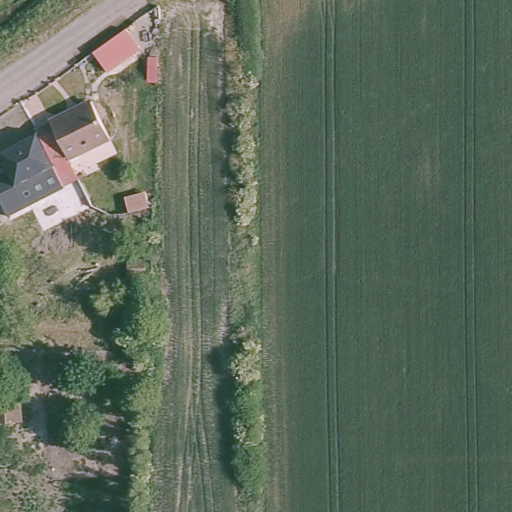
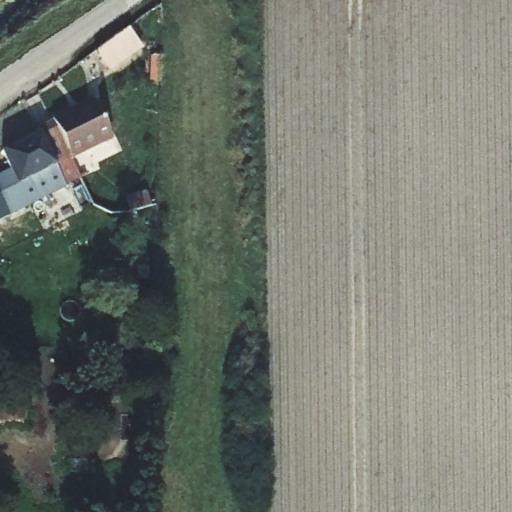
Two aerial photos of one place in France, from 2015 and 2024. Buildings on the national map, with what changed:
unchanged [(35,137),(33,133),(89,105),(110,145),(53,174),(35,137)]
unchanged [(53,174),(62,191),(7,220),(0,208),(0,178),(7,175),(0,162),(0,155),(35,137),(53,174)]
unchanged [(129,175),(110,184),(101,165),(120,155),(129,175)]
unchanged [(18,397),(20,420),(0,422),(0,398),(18,397)]

